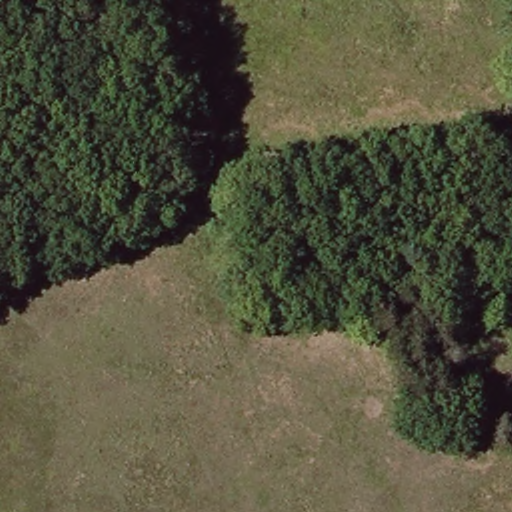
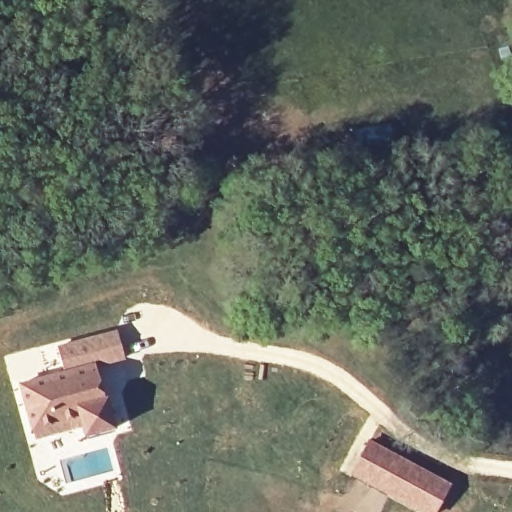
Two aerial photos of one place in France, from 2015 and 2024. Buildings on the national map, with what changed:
new [(62,369),(56,345),(116,328),(125,360),(97,367),(115,429),(82,438),(80,429),(33,441),(16,382),(62,369)]

